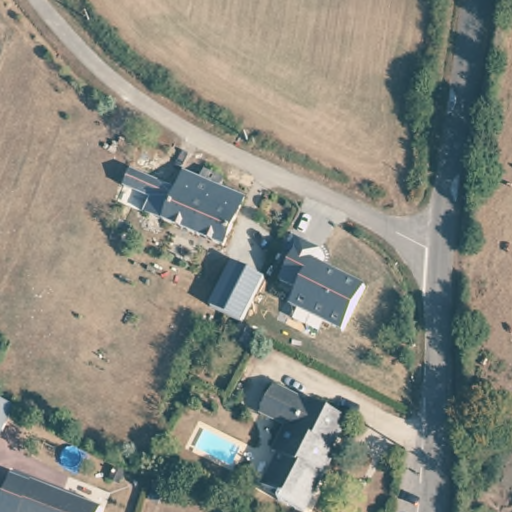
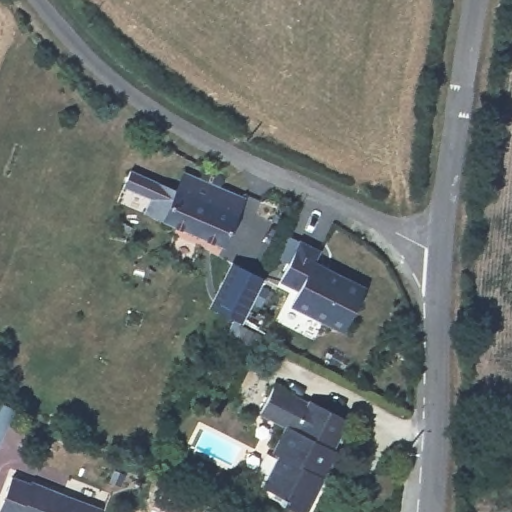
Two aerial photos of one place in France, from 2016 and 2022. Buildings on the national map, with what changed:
unchanged [(139,198),(147,179),(175,191),(184,172),(200,179),(204,169),(221,175),(221,182),(216,186),(245,197),(223,245),(145,212),(149,203),(139,198)]
unchanged [(341,333),(290,307),(299,289),(280,281),(298,244),(314,251),(312,262),(363,286),(341,333)]
unchanged [(240,322),(209,305),(232,263),(263,278),(240,322)]
unchanged [(304,509),(280,497),(282,492),(263,482),(277,451),(271,448),(285,420),(260,408),(272,381),(307,398),(308,395),(346,415),(332,444),(335,445),(304,509)]
unchanged [(10,405),(0,433),(0,401),(10,405)]
unchanged [(108,512),(7,512),(19,480),(38,488),(39,485),(109,510),(108,512)]

